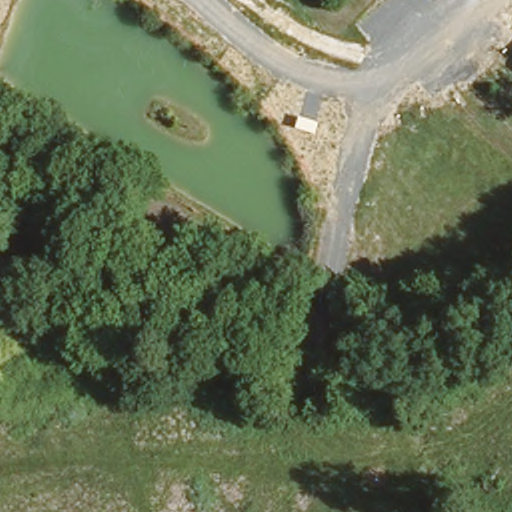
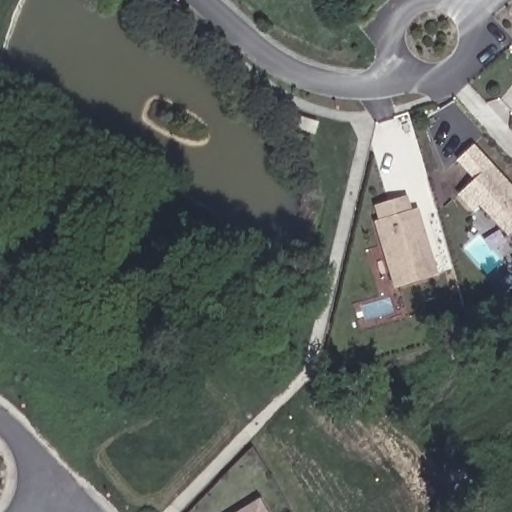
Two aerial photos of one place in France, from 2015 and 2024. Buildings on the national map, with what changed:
new [(477,206),(471,212),(455,194),(471,179),(455,161),(472,145),(512,187),(512,231),(506,236),(477,206)]
new [(393,289),(372,222),(378,220),(373,206),(406,196),(410,210),(417,208),(438,276),(393,289)]
new [(266,512),(238,512),(258,499),(266,512)]

